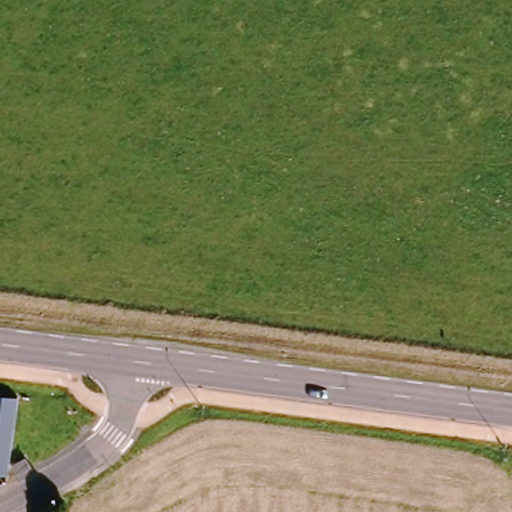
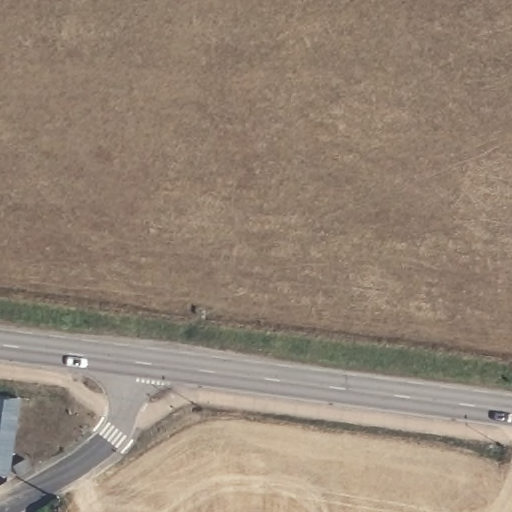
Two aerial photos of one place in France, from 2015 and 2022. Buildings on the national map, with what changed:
unchanged [(17,397),(7,475),(0,474),(0,395),(17,397)]
unchanged [(32,466),(23,471),(20,466),(28,460),(32,466)]

